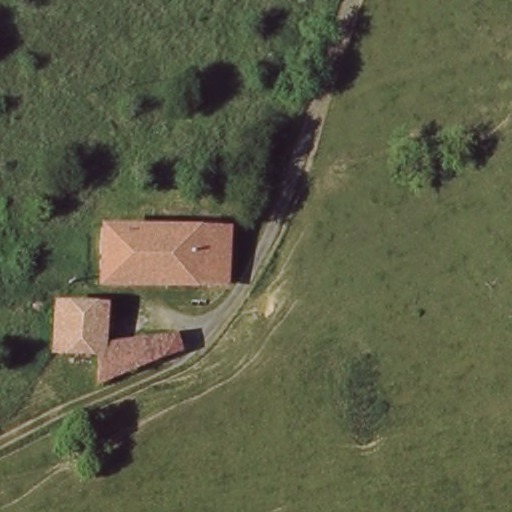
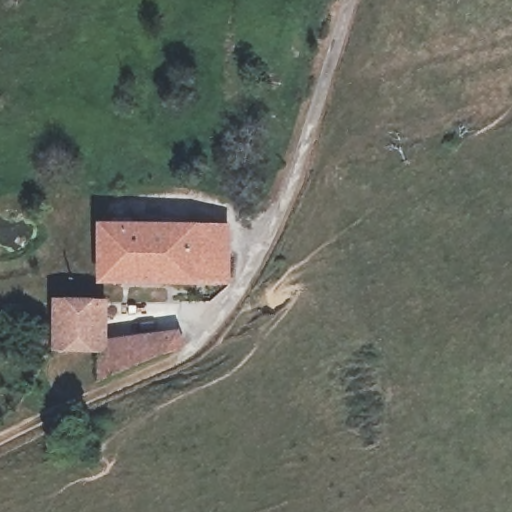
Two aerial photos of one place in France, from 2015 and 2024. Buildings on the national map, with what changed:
unchanged [(100,285),(101,228),(218,228),(219,286),(100,285)]
unchanged [(184,344),(107,382),(104,357),(56,355),(58,313),(113,312),(113,323),(136,323),(138,347),(178,328),(184,344)]

